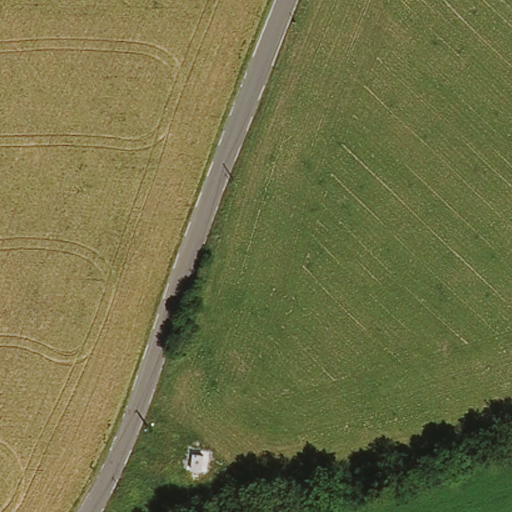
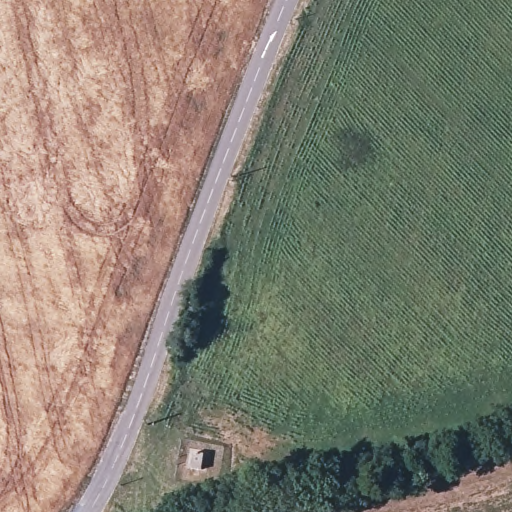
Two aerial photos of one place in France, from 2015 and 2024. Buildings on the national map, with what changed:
[]

